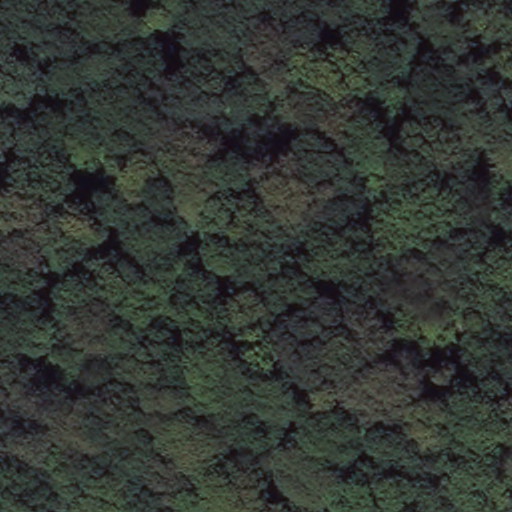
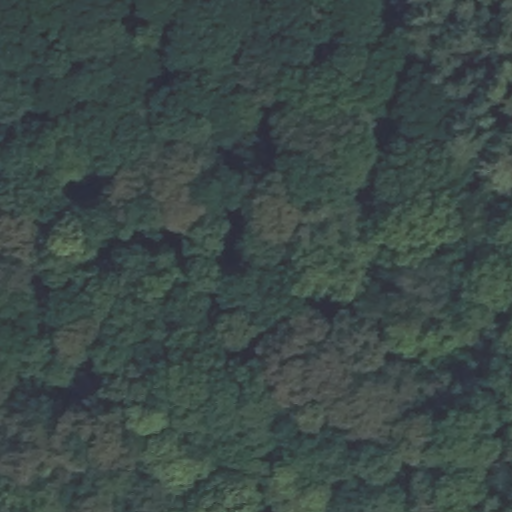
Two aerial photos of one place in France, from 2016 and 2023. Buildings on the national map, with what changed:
[]

